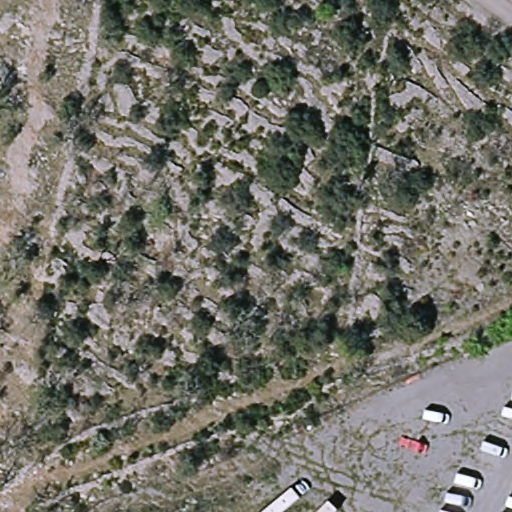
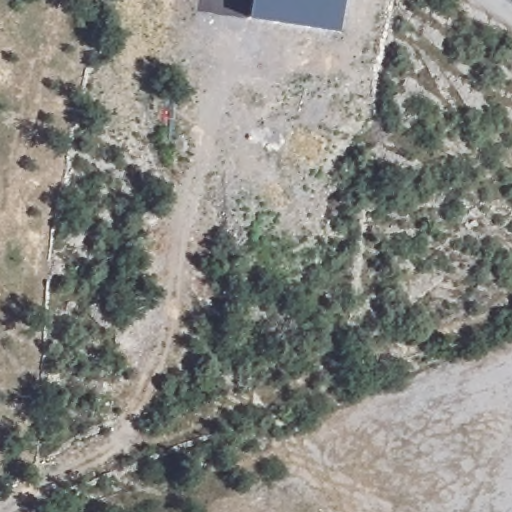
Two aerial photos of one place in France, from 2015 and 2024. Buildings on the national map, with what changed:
new [(247,18),(250,0),(344,0),(340,31),(247,18)]

